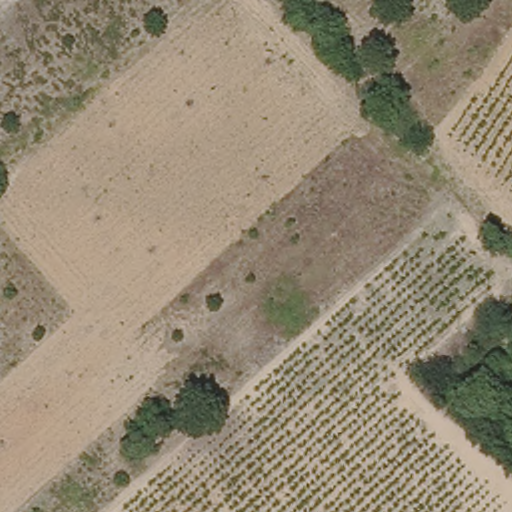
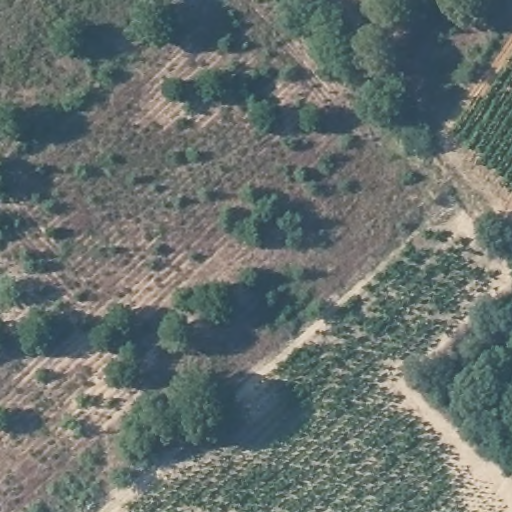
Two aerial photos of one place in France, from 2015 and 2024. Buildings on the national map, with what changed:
[]

